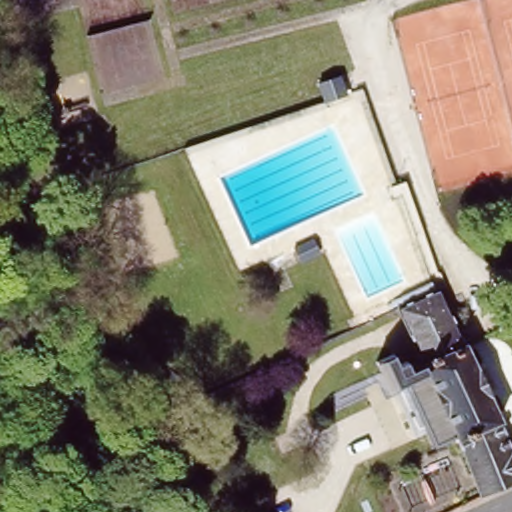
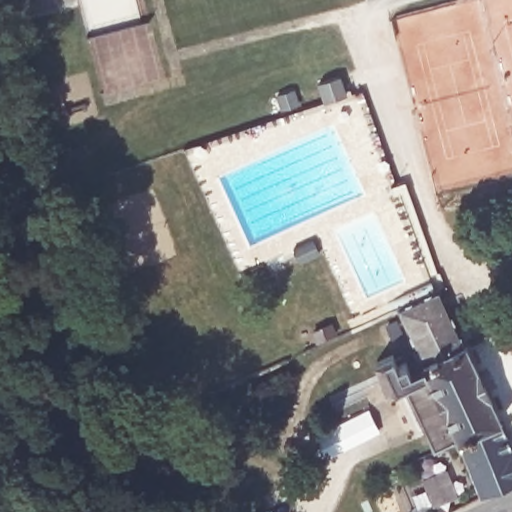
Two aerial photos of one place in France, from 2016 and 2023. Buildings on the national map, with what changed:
unchanged [(340,81),(345,104),(319,109),(314,87),(340,81)]
unchanged [(399,305),(397,297),(428,283),(432,290),(437,288),(511,450),(512,449),(512,481),(479,496),(396,311),(394,307),(399,305)]

